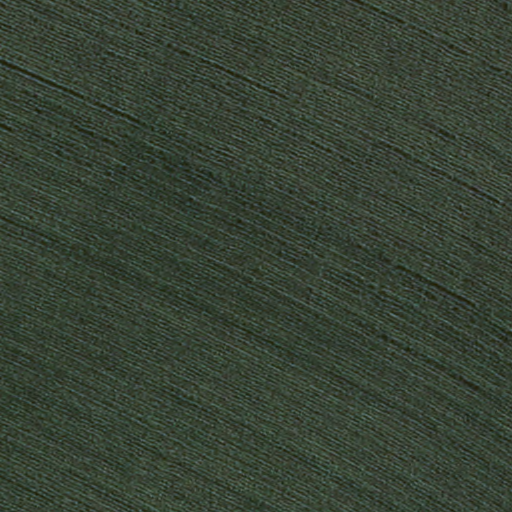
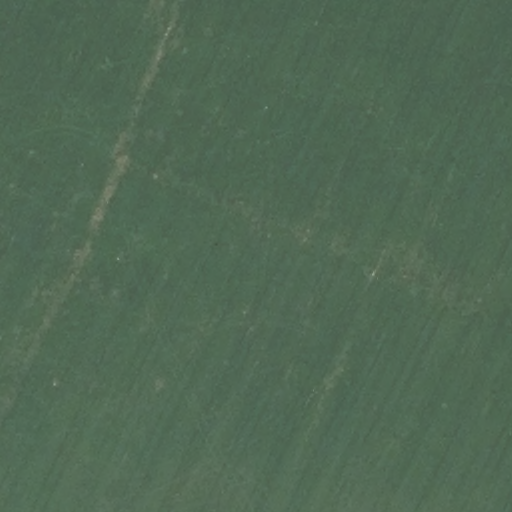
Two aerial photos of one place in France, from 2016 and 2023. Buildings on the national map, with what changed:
[]

